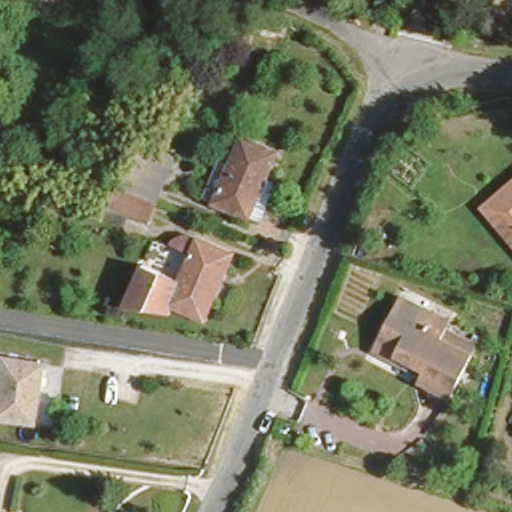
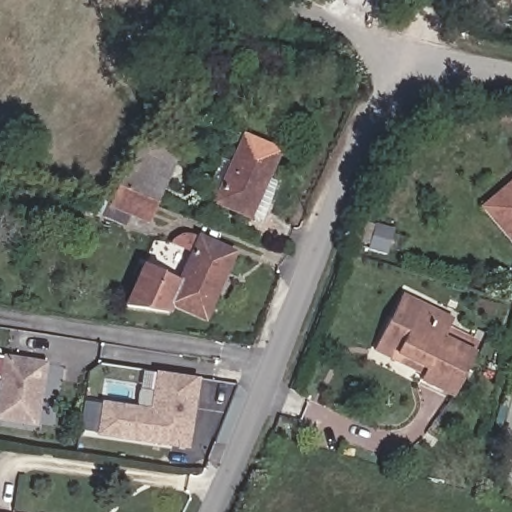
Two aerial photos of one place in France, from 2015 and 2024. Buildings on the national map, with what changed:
unchanged [(263,173),(256,215),(202,195),(209,176),(228,129),(265,144),(254,171),(263,173)]
unchanged [(156,191),(121,177),(140,142),(171,155),(156,191)]
unchanged [(512,170),(512,233),(481,197),(512,170)]
unchanged [(111,199),(121,177),(156,191),(141,227),(94,209),(100,195),(111,199)]
unchanged [(174,224),(230,246),(204,312),(167,298),(166,306),(127,300),(141,259),(178,272),(187,247),(169,241),(174,224)]
unchanged [(379,336),(389,315),(401,288),(451,312),(448,320),(442,335),(475,351),(457,392),(425,377),(428,372),(374,347),(379,336)]
unchanged [(34,420),(0,415),(0,351),(42,357),(34,420)]
new [(149,407),(154,372),(199,379),(188,450),(96,436),(100,401),(149,407)]

